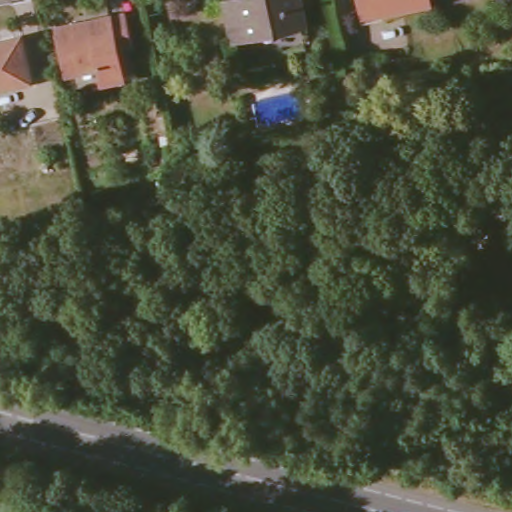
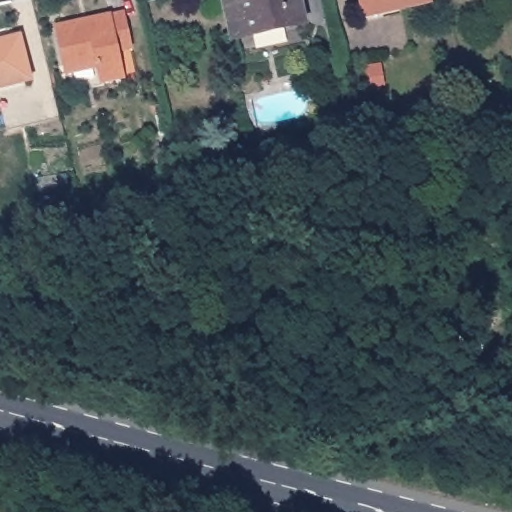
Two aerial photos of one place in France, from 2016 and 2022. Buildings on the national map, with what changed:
unchanged [(252,34),(233,37),(226,1),(228,0),(300,0),(305,25),(252,36),(252,34)]
unchanged [(359,0),(433,0),(433,2),(362,19),(359,0)]
unchanged [(102,82),(100,67),(68,75),(57,29),(127,14),(135,48),(119,51),(125,77),(102,82)]
unchanged [(32,82),(0,89),(0,41),(21,36),(32,82)]

